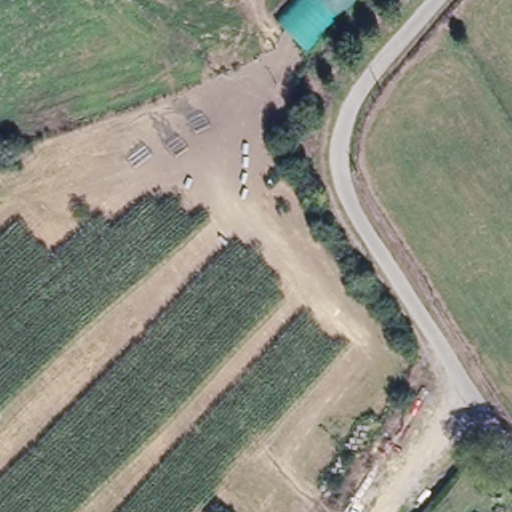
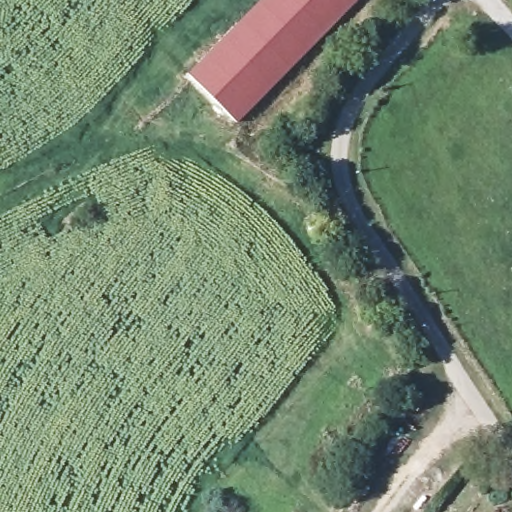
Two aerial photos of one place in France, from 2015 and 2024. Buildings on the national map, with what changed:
new [(238,123),(187,75),(260,0),(359,0),(238,123)]
demolished [(309,58),(275,27),(300,0),(363,0),(309,58)]

